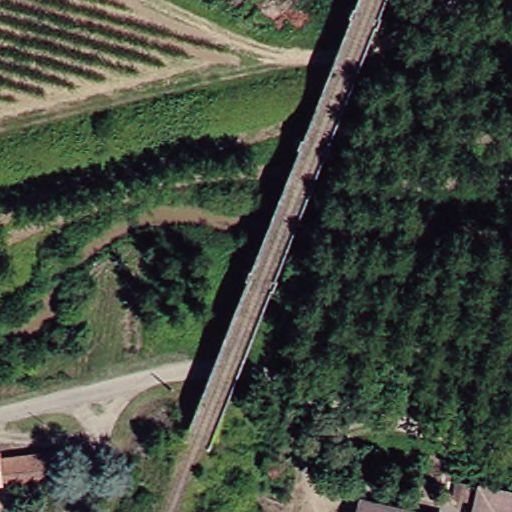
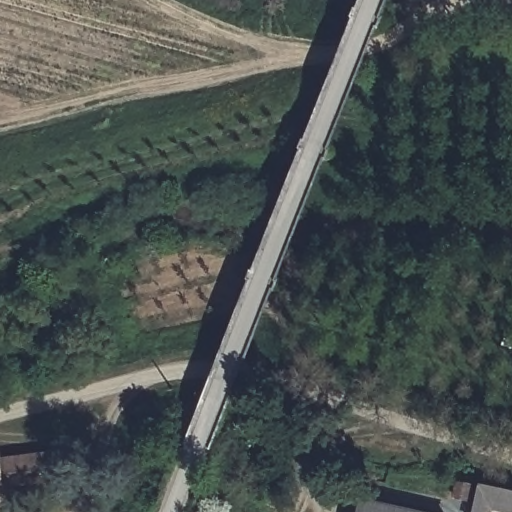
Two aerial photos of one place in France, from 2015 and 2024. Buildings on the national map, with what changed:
unchanged [(107,402),(106,418),(91,418),(91,403),(107,402)]
unchanged [(1,472),(1,457),(60,455),(61,469),(1,472)]
unchanged [(447,500),(450,483),(471,487),(468,503),(447,500)]
unchanged [(473,508),(477,488),(495,492),(512,496),(512,512),(472,512),(473,508)]
unchanged [(356,497),(423,512),(352,512),(356,497)]

